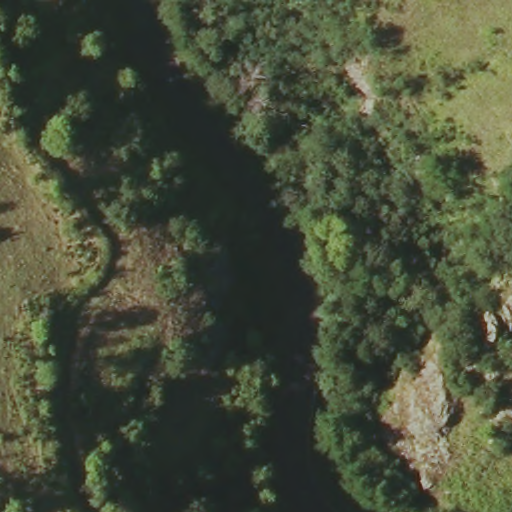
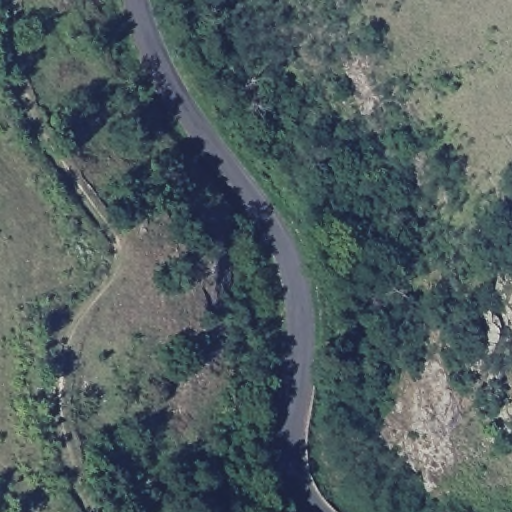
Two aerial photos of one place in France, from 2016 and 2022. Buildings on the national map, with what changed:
[]

